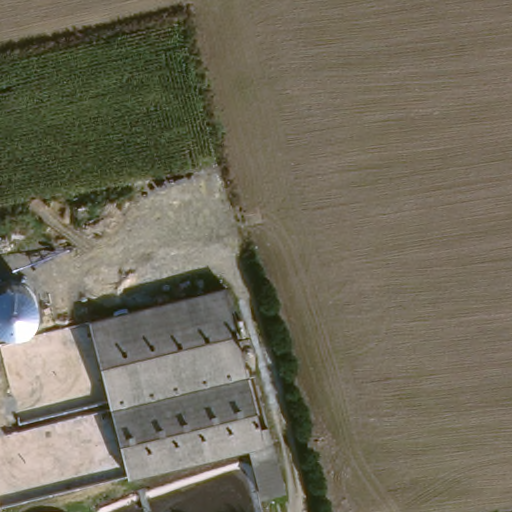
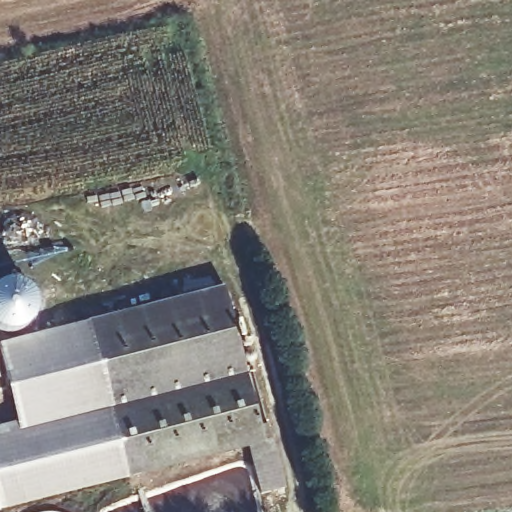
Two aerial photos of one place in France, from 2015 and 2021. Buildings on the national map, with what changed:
new [(30,325),(26,329),(18,332),(9,333),(1,331),(0,331),(0,284),(5,282),(11,282),(18,283),(24,286),(30,290),(33,295),(34,297),(35,302),(36,307),(34,319),(30,325)]
unchanged [(96,322),(233,289),(273,446),(133,477),(96,322)]
new [(4,508),(0,491),(0,436),(10,434),(7,426),(20,422),(23,431),(26,430),(6,345),(96,322),(133,477),(4,508)]
demolished [(0,376),(0,359),(4,375),(0,376)]

